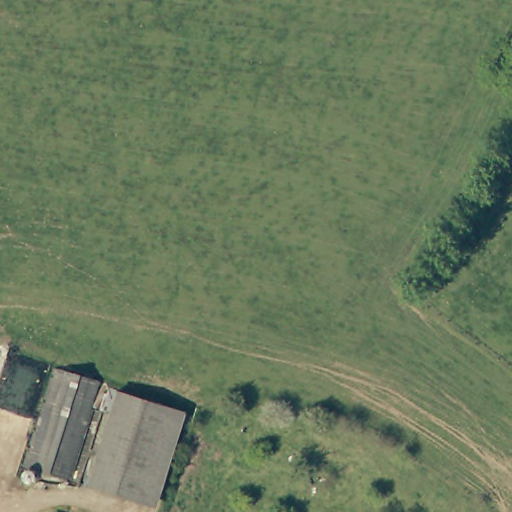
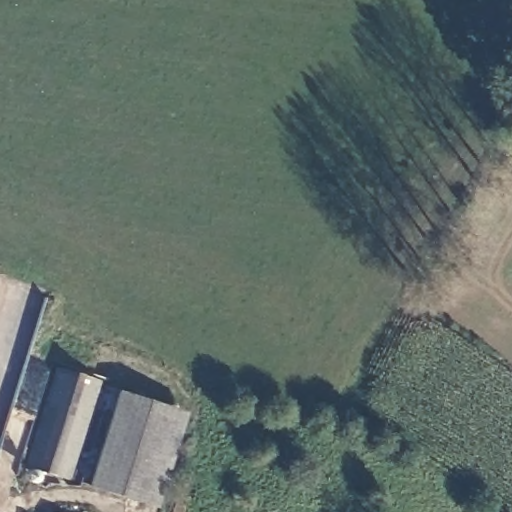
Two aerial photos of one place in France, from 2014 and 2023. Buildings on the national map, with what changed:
unchanged [(30,479),(34,466),(20,462),(51,362),(93,375),(64,475),(44,469),(40,482),(30,479)]
unchanged [(117,390),(185,412),(157,507),(88,486),(117,390)]
unchanged [(51,511),(54,512),(51,512),(51,511)]

